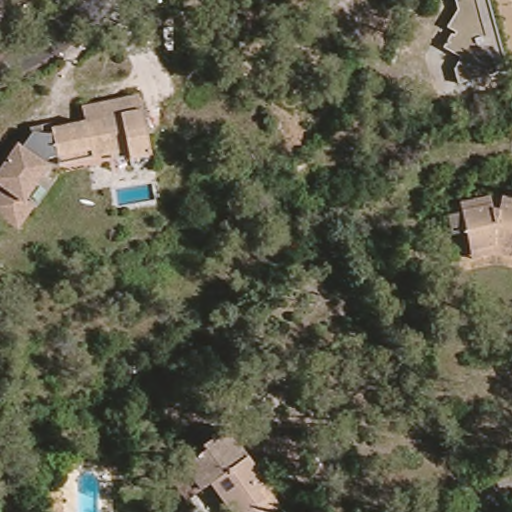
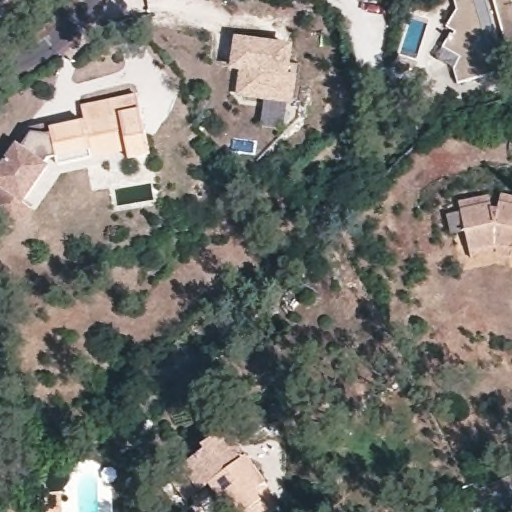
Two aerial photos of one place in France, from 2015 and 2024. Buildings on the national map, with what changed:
unchanged [(495,45),(492,45),(494,53),(489,53),(491,60),(503,70),(506,82),(469,92),(465,77),(471,67),(455,56),(462,44),(464,46),(466,41),(458,35),(468,19),(466,8),(483,3),(495,45)]
new [(234,68),(238,40),(291,47),(284,100),(241,94),(244,69),(234,68)]
unchanged [(0,195),(4,189),(0,186),(0,171),(18,147),(21,149),(31,134),(30,128),(51,124),(52,129),(85,121),(83,106),(128,97),(138,95),(150,154),(129,158),(126,150),(59,165),(57,158),(50,159),(45,165),(49,169),(23,202),(31,208),(16,228),(0,216),(0,195)]
unchanged [(509,266),(494,263),(471,267),(469,259),(461,222),(459,212),(488,205),(489,214),(498,217),(499,211),(501,204),(512,206),(512,267),(509,266)]
unchanged [(165,469),(179,459),(201,443),(198,439),(221,423),(261,477),(256,480),(273,503),(260,512),(234,512),(228,512),(204,478),(196,483),(183,493),(165,469)]

